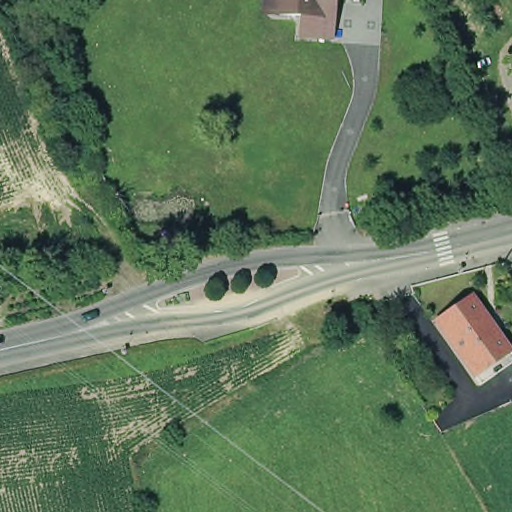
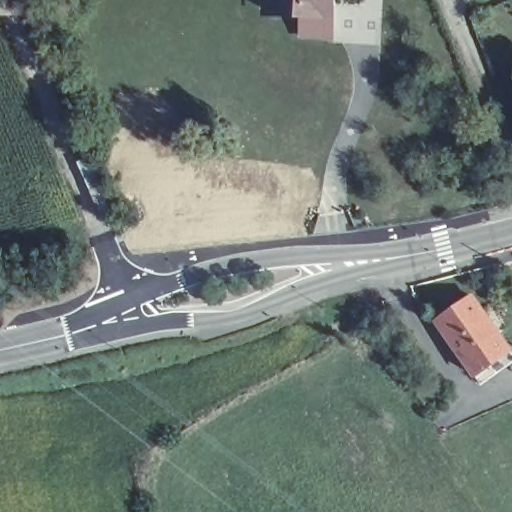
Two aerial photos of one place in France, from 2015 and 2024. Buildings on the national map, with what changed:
unchanged [(301,29),(302,9),(275,7),(268,0),(336,0),(334,31),(301,29)]
unchanged [(470,377),(432,322),(468,297),(506,352),(512,360),(475,385),(470,377)]

